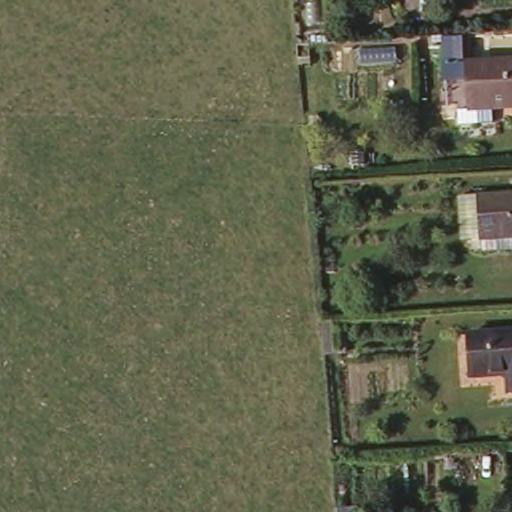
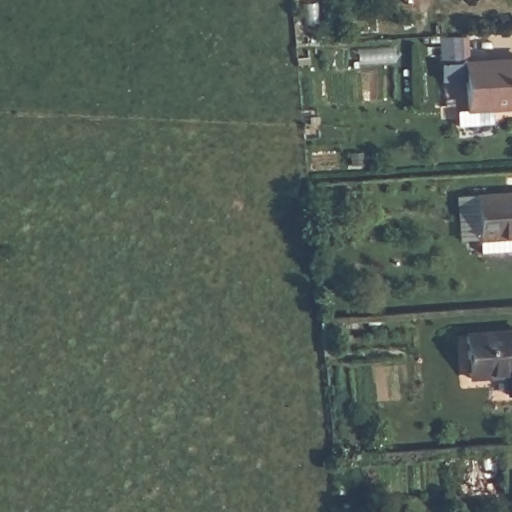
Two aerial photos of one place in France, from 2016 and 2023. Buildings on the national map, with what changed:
unchanged [(512,98),(497,100),(496,115),(462,117),(458,56),(512,52),(512,98)]
unchanged [(478,237),(476,193),(512,191),(512,247),(478,249),(478,237)]
unchanged [(332,320),(335,356),(323,358),(319,320),(332,320)]
unchanged [(512,391),(507,391),(505,371),(469,372),(467,332),(512,330),(512,391)]

